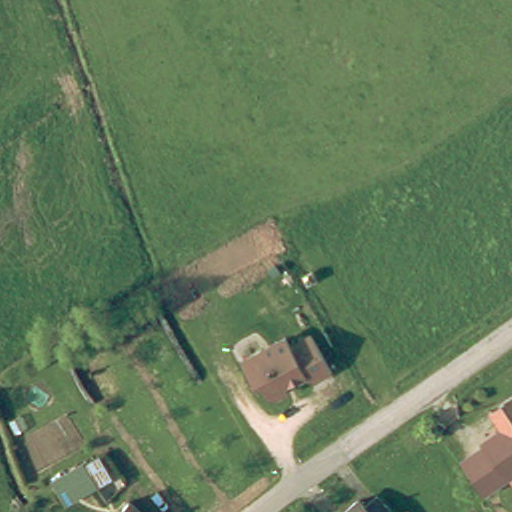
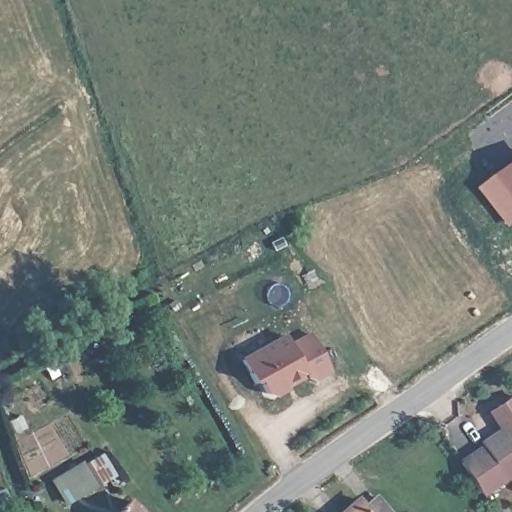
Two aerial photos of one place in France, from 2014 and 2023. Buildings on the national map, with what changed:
new [(474,188),(512,156),(512,221),(506,226),(474,188)]
unchanged [(282,332),(286,338),(309,327),(333,370),(309,381),(306,376),(266,397),(238,355),(282,332)]
unchanged [(512,421),(512,472),(481,493),(459,461),(482,447),(479,442),(512,421)]
unchanged [(89,485),(62,502),(50,483),(77,466),(89,485)]
unchanged [(380,491),(398,512),(343,512),(364,494),(369,500),(380,491)]
unchanged [(146,512),(121,512),(133,500),(146,512)]

